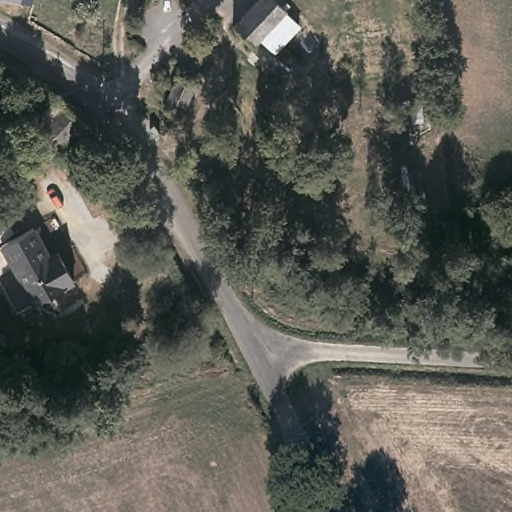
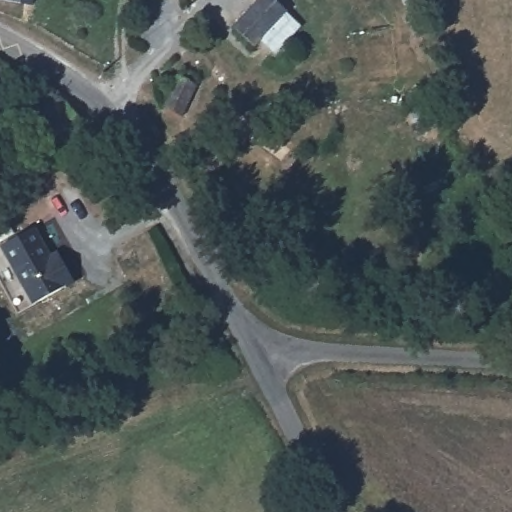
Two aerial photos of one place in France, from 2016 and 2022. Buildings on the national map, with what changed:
unchanged [(26,11),(0,6),(0,0),(29,0),(26,11)]
unchanged [(255,0),(275,0),(283,8),(252,41),(232,23),(255,0)]
unchanged [(196,86),(182,116),(163,107),(178,77),(196,86)]
unchanged [(84,127),(59,153),(39,132),(45,126),(31,113),(48,95),(84,127)]
unchanged [(51,265),(60,259),(76,284),(37,307),(4,249),(33,232),(51,265)]

